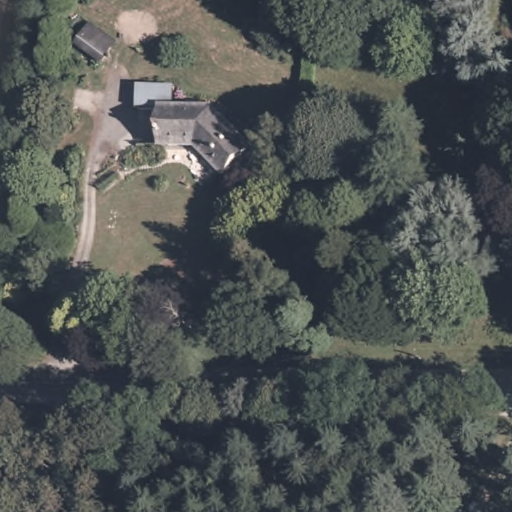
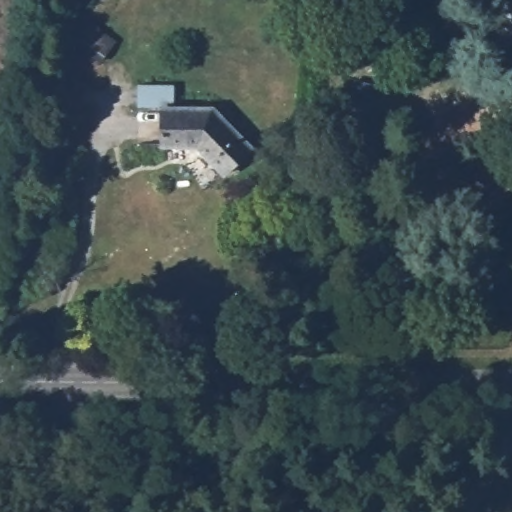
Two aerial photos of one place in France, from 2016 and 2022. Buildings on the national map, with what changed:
unchanged [(214,102),(252,139),(227,165),(193,135),(161,134),(162,99),(214,102)]

